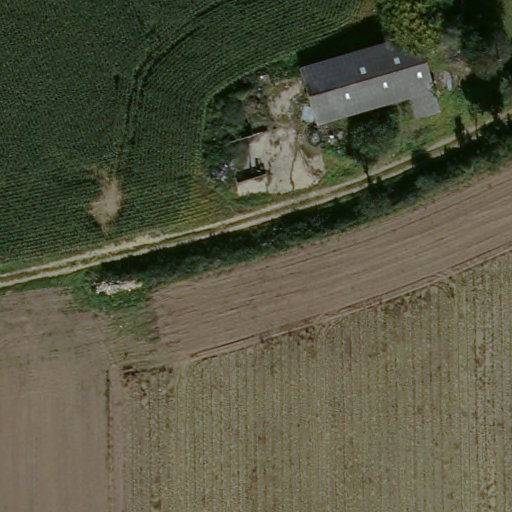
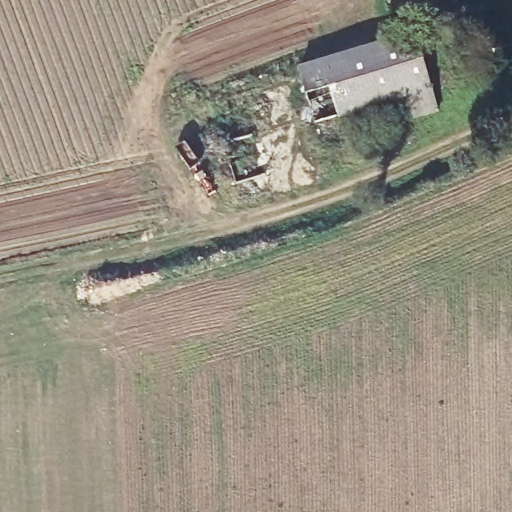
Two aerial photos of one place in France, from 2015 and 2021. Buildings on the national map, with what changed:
unchanged [(407,119),(399,98),(309,128),(290,77),(401,39),(419,32),(426,53),(409,59),(429,111),(407,119)]

